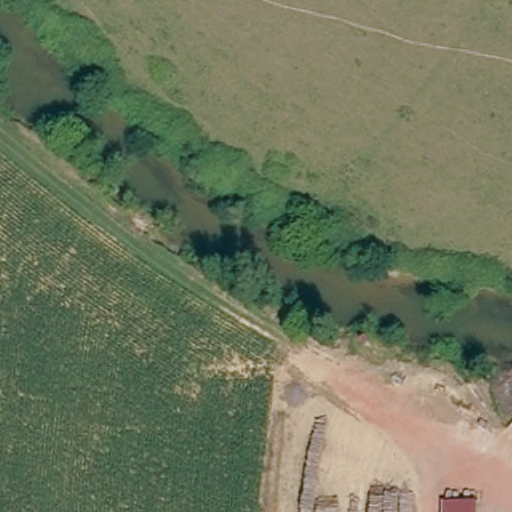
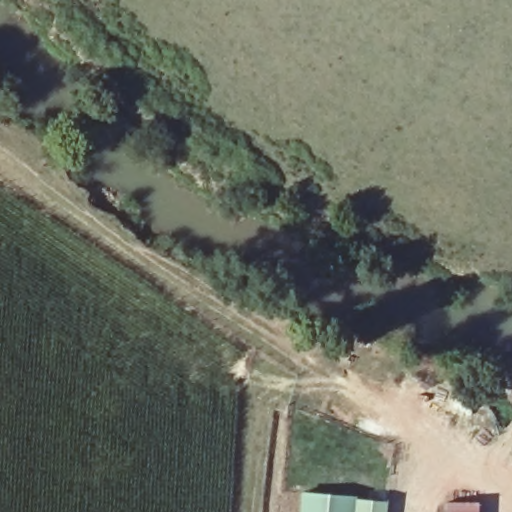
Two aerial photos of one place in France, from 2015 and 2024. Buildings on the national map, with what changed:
new [(356,495),(355,512),(299,512),(301,491),(356,495)]
new [(386,501),(385,512),(355,512),(356,497),(386,501)]
unchanged [(474,512),(446,512),(446,508),(474,507),(474,512)]

